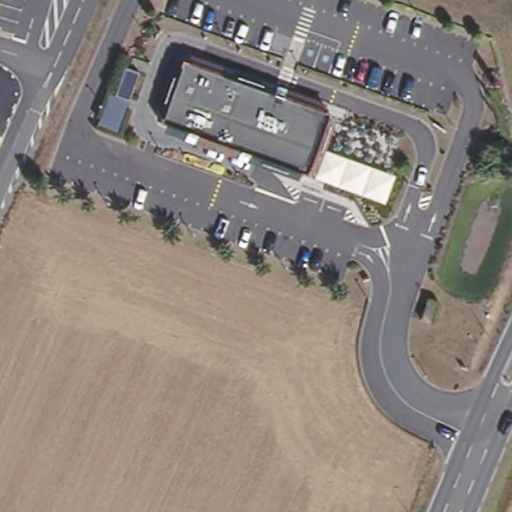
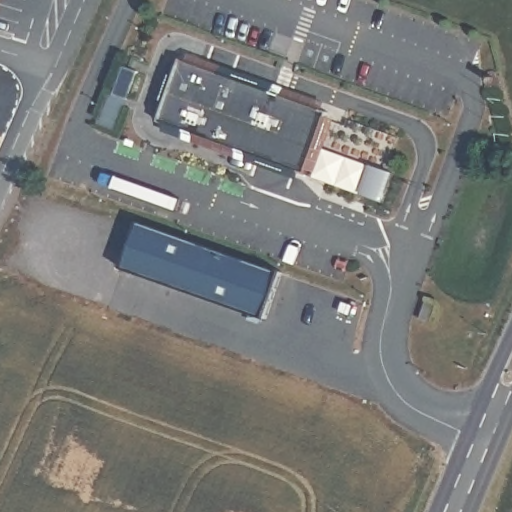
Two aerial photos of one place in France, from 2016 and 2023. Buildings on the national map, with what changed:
unchanged [(324,106),(330,115),(313,164),(302,169),(164,123),(181,57),(324,106)]
new [(140,219),(276,265),(255,318),(117,270),(140,219)]

